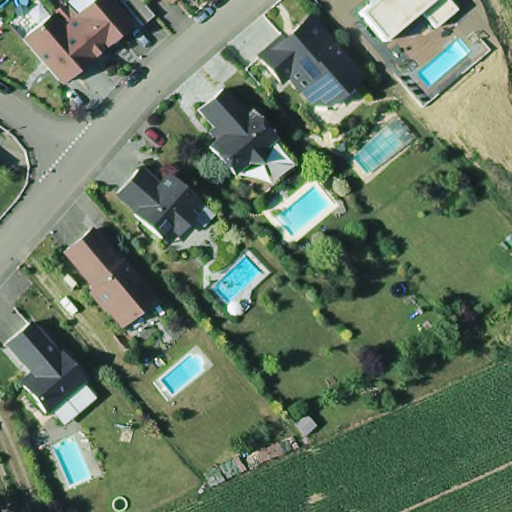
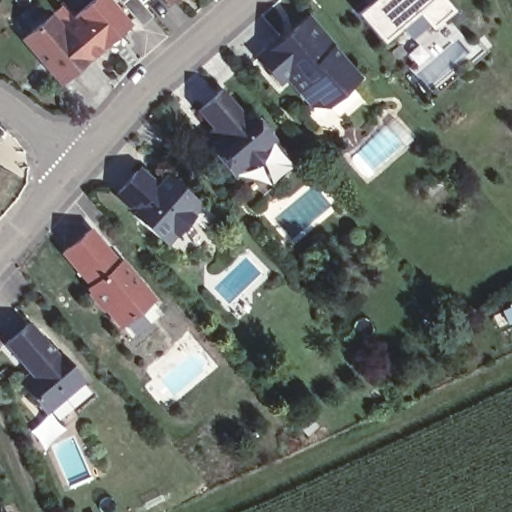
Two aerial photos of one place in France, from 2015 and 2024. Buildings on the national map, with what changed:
unchanged [(52,16),(65,6),(75,18),(97,0),(110,0),(132,26),(91,61),(52,16)]
unchanged [(139,2),(137,0),(140,0),(139,2)]
unchanged [(165,2),(163,0),(168,0),(165,2)]
unchanged [(430,31),(416,14),(382,43),(355,14),(371,0),(445,0),(454,11),(430,31)]
unchanged [(62,86),(23,41),(52,16),(91,61),(62,86)]
unchanged [(357,79),(325,106),(310,107),(283,78),(276,84),(254,59),(277,38),(282,43),(292,34),(290,32),(305,17),(333,47),(330,50),(357,79)]
unchanged [(234,175),(209,147),(222,137),(199,110),(222,90),(247,116),(251,112),(275,138),(262,150),(262,164),(246,164),(234,175)]
unchanged [(135,216),(139,211),(117,192),(138,170),(157,188),(169,176),(171,178),(195,199),(204,206),(192,217),(180,232),(169,246),(161,239),(135,216)]
unchanged [(120,261),(152,300),(121,325),(107,307),(105,310),(90,292),(92,290),(89,287),(93,283),(85,272),(82,273),(64,251),(89,230),(109,254),(107,255),(115,265),(120,261)]
unchanged [(25,366),(5,344),(28,322),(54,353),(32,371),(26,364),(25,366)]
unchanged [(57,351),(84,379),(47,412),(20,383),(32,371),(54,353),(57,351)]

